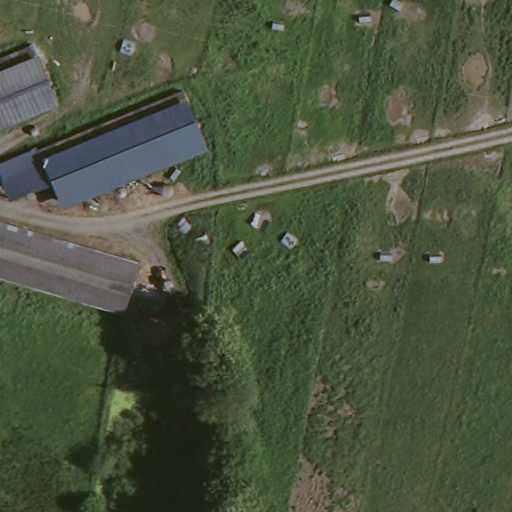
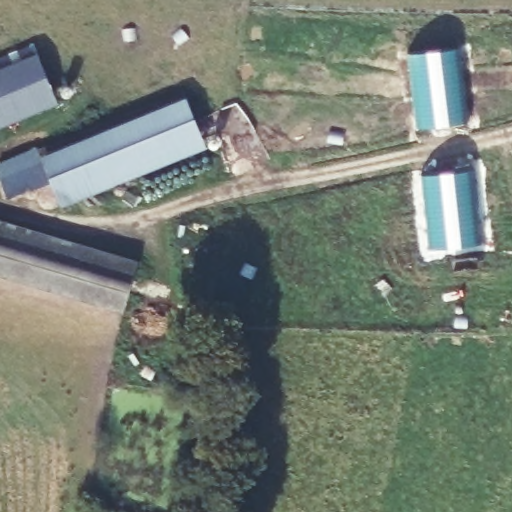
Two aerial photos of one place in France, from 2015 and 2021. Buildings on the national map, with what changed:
unchanged [(51,96),(0,115),(0,52),(30,40),(51,96)]
new [(462,50),(470,125),(418,131),(411,56),(462,50)]
unchanged [(204,139),(133,167),(140,184),(116,195),(106,177),(56,200),(46,182),(17,191),(4,169),(36,154),(32,147),(180,85),(204,139)]
new [(475,172),(480,247),(428,252),(422,177),(475,172)]
unchanged [(135,257),(122,305),(0,270),(0,219),(135,257)]

